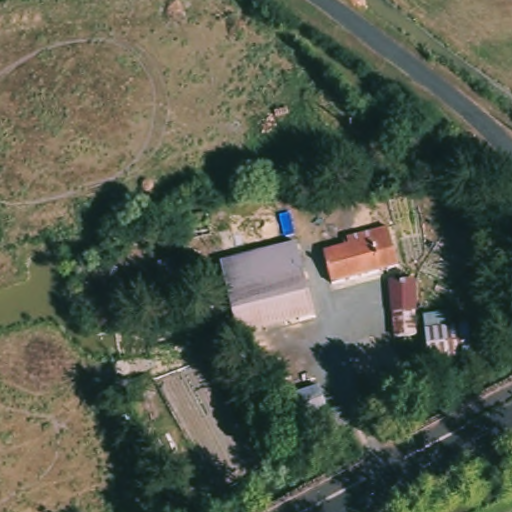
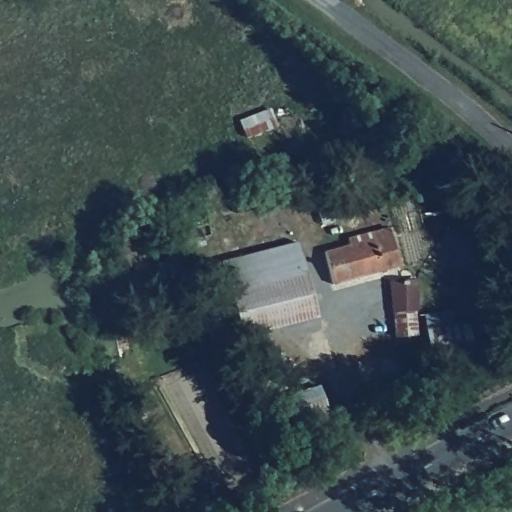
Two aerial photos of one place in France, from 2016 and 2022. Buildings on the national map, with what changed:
unchanged [(385,230),(395,257),(398,271),(330,290),(323,259),(345,253),(345,243),(370,233),(385,230)]
unchanged [(223,263),(293,244),(303,278),(231,296),(223,263)]
unchanged [(303,278),(314,317),(242,338),(231,296),(303,278)]
unchanged [(413,297),(417,340),(407,341),(393,341),(388,299),(396,298),(413,297)]
unchanged [(450,313),(455,329),(471,325),(474,352),(433,363),(422,317),(450,313)]
unchanged [(393,387),(398,410),(382,414),(376,391),(393,387)]
unchanged [(317,394),(324,412),(293,429),(285,409),(317,394)]

